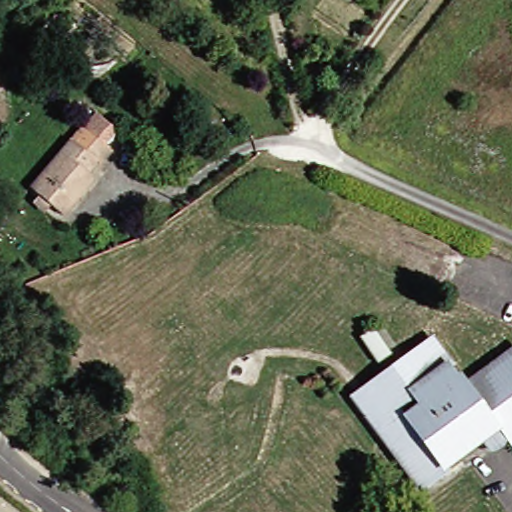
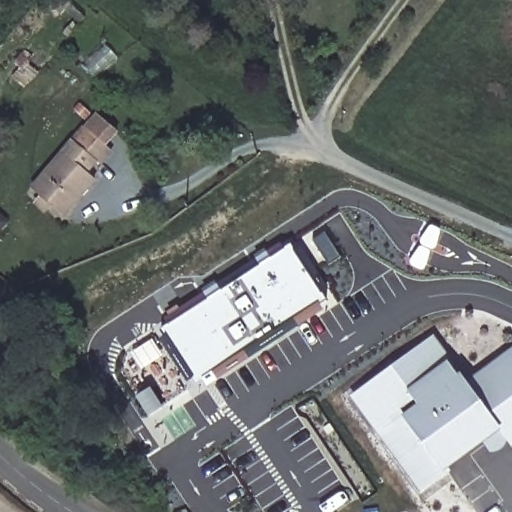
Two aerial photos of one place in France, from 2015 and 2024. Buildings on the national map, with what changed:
unchanged [(60,0),(68,0),(71,3),(60,14),(53,7),(60,0)]
unchanged [(36,208),(41,202),(32,194),(84,133),(96,119),(117,137),(106,150),(111,155),(100,169),(96,165),(86,177),(95,184),(64,220),(50,209),(45,215),(36,208)]
unchanged [(0,232),(0,213),(9,222),(0,232)]
new [(292,244),(327,299),(197,384),(161,329),(292,244)]
unchanged [(392,354),(379,363),(362,338),(375,329),(392,354)]
unchanged [(482,436),(441,466),(447,474),(425,490),(392,445),(382,432),(355,394),(367,385),(431,339),(462,381),(465,379),(471,387),(512,356),(512,438),(509,441),(507,439),(492,450),(482,436)]

